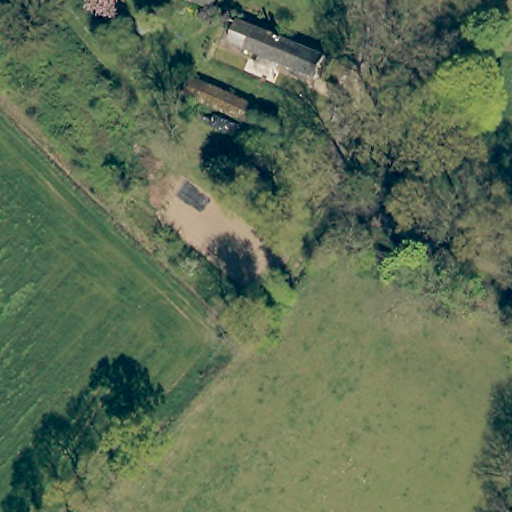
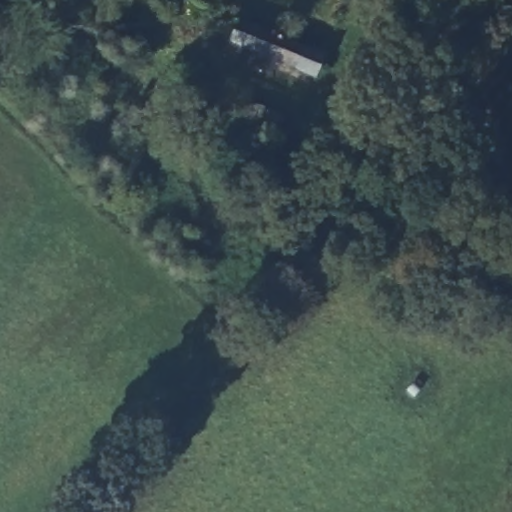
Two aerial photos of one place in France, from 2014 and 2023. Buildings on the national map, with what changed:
unchanged [(214,10),(195,2),(189,0),(218,0),(214,10)]
unchanged [(231,42),(240,21),(326,56),(316,79),(231,42)]
unchanged [(187,65),(258,99),(256,104),(270,110),(275,113),(265,132),(175,91),(178,84),(162,76),(170,62),(185,70),(187,65)]

